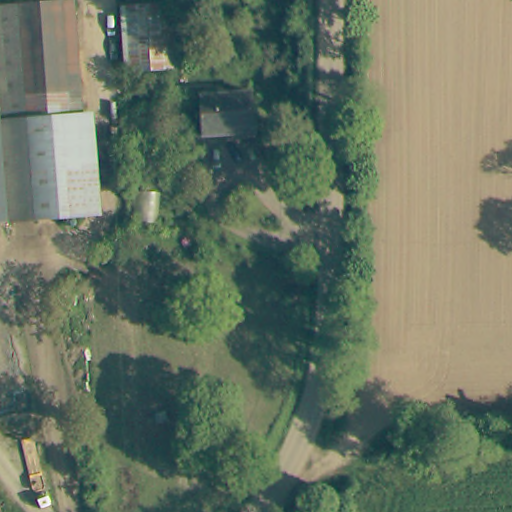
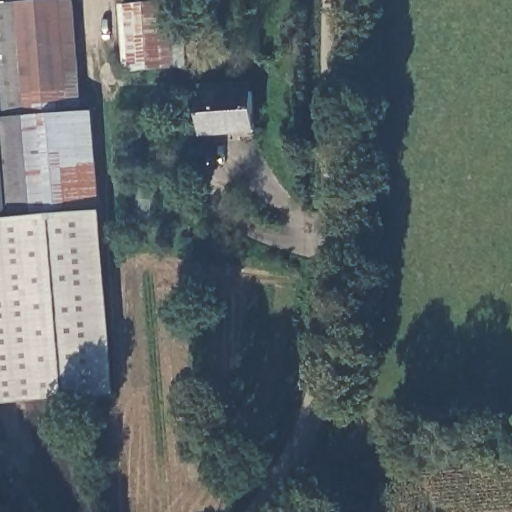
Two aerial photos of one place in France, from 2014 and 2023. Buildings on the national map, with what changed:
unchanged [(74,0),(84,88),(0,93),(0,3),(27,0),(74,0)]
unchanged [(130,89),(122,0),(179,0),(185,85),(130,89)]
unchanged [(84,88),(85,120),(100,121),(106,222),(0,230),(0,93),(84,88)]
unchanged [(252,94),(252,138),(200,139),(199,95),(252,94)]
new [(102,223),(116,396),(0,404),(0,230),(102,223)]

